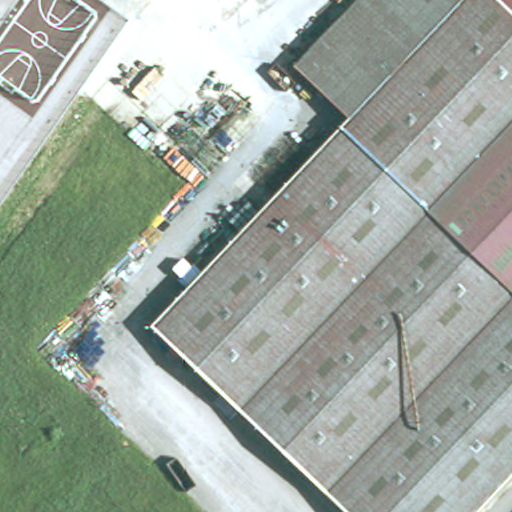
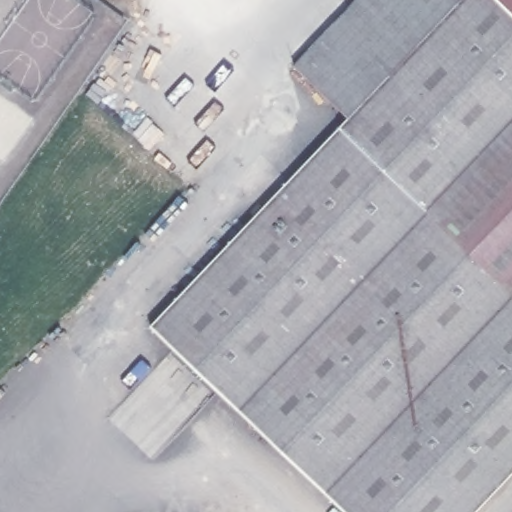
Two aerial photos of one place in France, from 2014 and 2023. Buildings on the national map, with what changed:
unchanged [(512,284),(512,472),(474,512),(350,512),(153,324),(206,269),(289,181),(351,116),(354,114),(363,104),(462,0),(501,0),(512,10),(512,122),(464,173),(462,175),(431,208),(512,284)]
unchanged [(359,0),(462,0),(363,104),(354,114),(351,116),(296,65),(359,0)]
unchanged [(512,0),(512,10),(501,0),(512,0)]
unchanged [(431,208),(462,175),(464,173),(512,122),(512,284),(431,208)]

